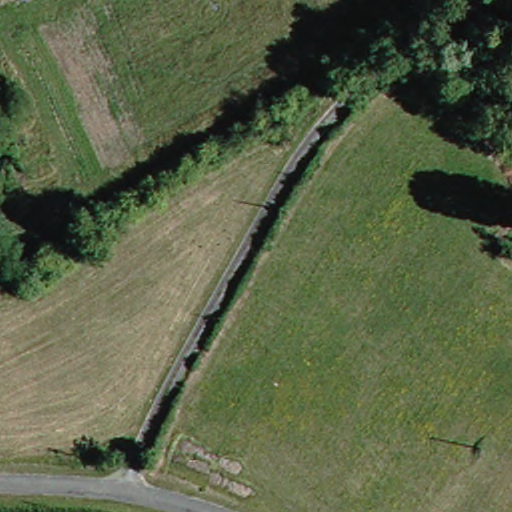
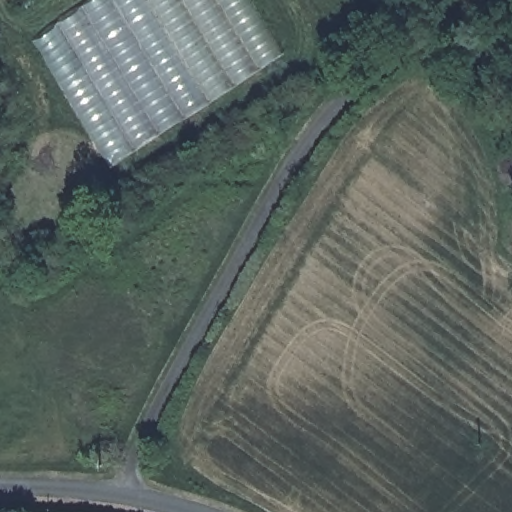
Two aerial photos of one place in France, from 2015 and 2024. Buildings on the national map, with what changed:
new [(91,0),(251,0),(283,54),(110,165),(32,39),(91,0)]

